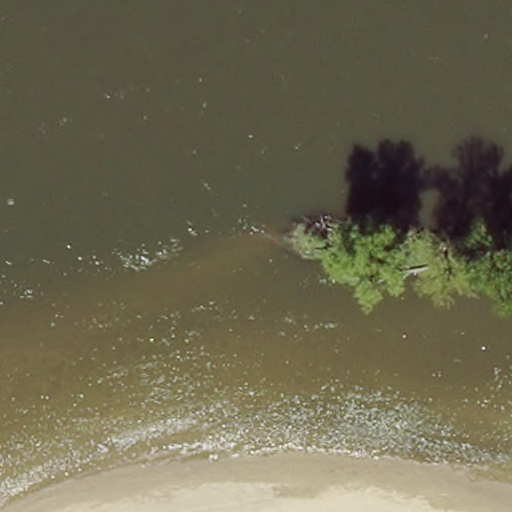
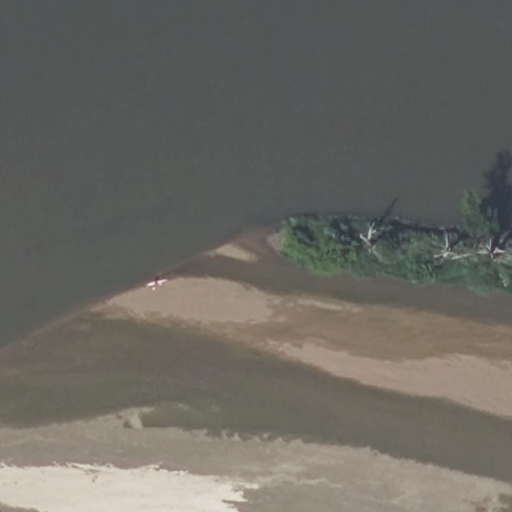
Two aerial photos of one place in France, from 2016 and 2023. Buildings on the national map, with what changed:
[]

